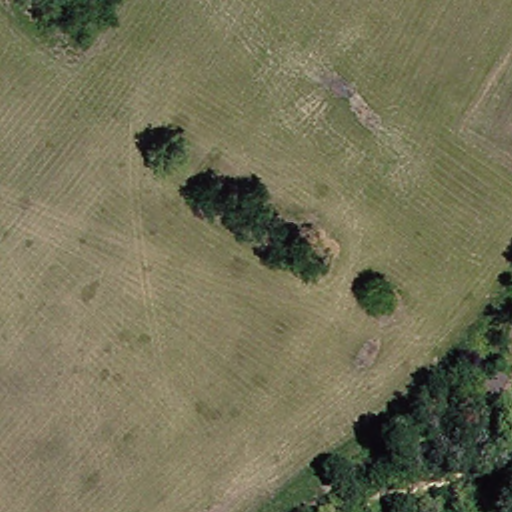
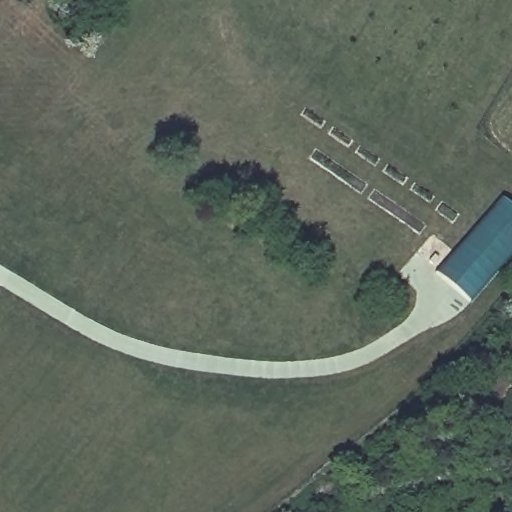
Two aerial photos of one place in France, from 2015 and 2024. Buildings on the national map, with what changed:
new [(437,272),(503,199),(512,207),(512,254),(470,303),(437,272)]
unchanged [(493,416),(473,399),(494,369),(512,381),(512,388),(493,416)]

